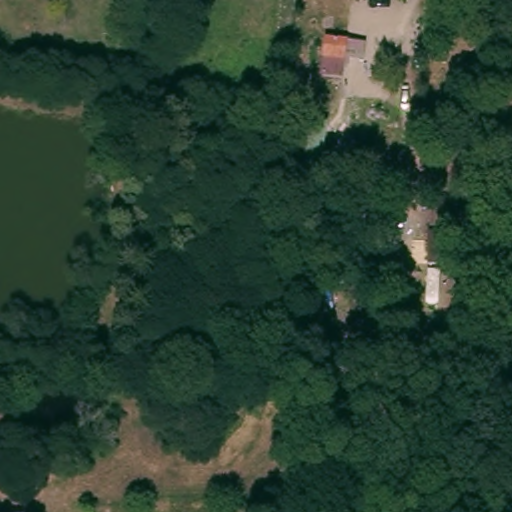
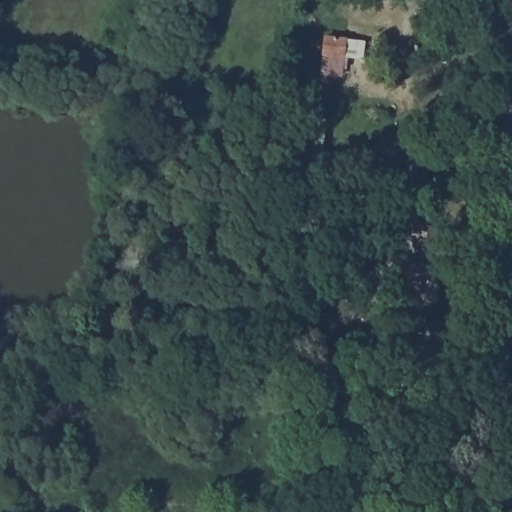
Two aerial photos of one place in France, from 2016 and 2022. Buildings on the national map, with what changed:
unchanged [(346,38),(341,76),(311,72),(318,35),(346,38)]
unchanged [(379,44),(378,62),(355,61),(355,44),(379,44)]

